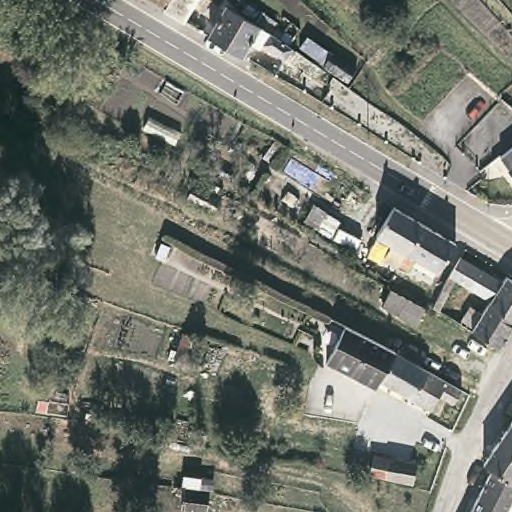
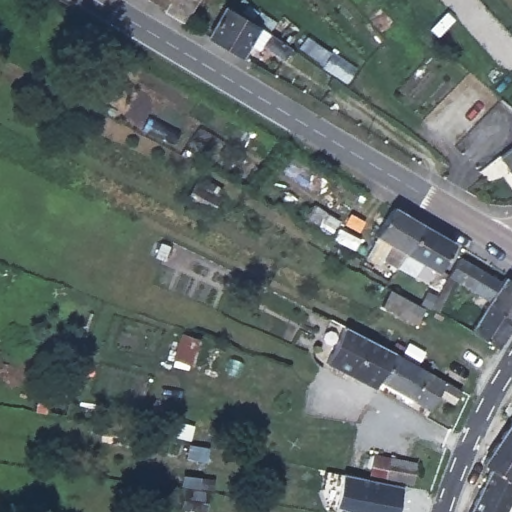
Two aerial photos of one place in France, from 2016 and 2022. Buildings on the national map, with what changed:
unchanged [(141,0),(165,0),(159,11),(141,0)]
unchanged [(165,0),(192,0),(179,26),(158,14),(159,11),(165,0)]
unchanged [(225,6),(222,10),(253,29),(254,27),(293,54),(289,58),(282,54),(278,60),(260,47),(256,53),(246,47),(239,60),(204,40),(219,14),(200,2),(200,0),(217,0),(225,6)]
unchanged [(505,172),(507,172),(497,158),(512,147),(512,182),(505,172)]
unchanged [(402,263),(388,256),(395,242),(378,233),(395,204),(426,221),(410,250),(402,263)]
unchanged [(426,221),(458,239),(435,281),(416,271),(423,258),(410,250),(426,221)]
unchanged [(508,268),(512,271),(512,308),(492,296),(493,293),(475,283),(462,276),(444,305),(438,302),(456,272),(465,256),(484,267),(503,277),(508,268)]
unchanged [(428,305),(419,321),(384,302),(393,286),(428,305)]
unchanged [(512,308),(512,327),(503,342),(474,325),(465,318),(472,306),(482,312),(492,296),(512,308)]
unchanged [(348,368),(363,340),(396,355),(380,380),(348,368)]
unchanged [(454,403),(441,397),(435,408),(416,398),(380,380),(396,355),(396,354),(430,372),(463,388),(454,403)]
unchanged [(485,468),(482,466),(512,421),(512,485),(485,468)]
new [(344,478),(369,483),(375,462),(385,465),(411,470),(406,491),(399,512),(355,512),(336,506),(344,478)]
demolished [(406,491),(380,485),(369,483),(375,462),(385,465),(411,470),(406,491)]
unchanged [(505,512),(465,512),(485,468),(512,485),(512,498),(505,512)]
unchanged [(208,512),(182,512),(184,500),(209,502),(208,512)]

